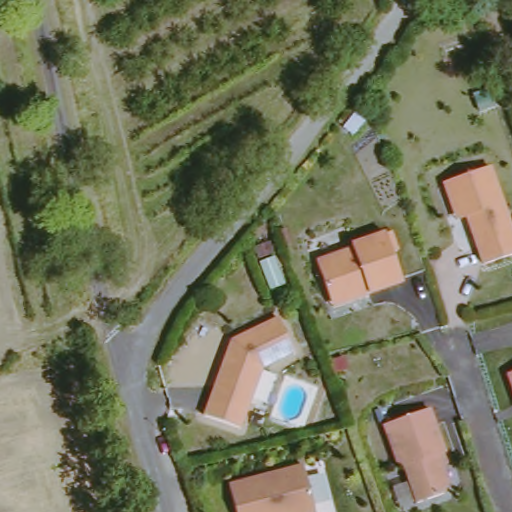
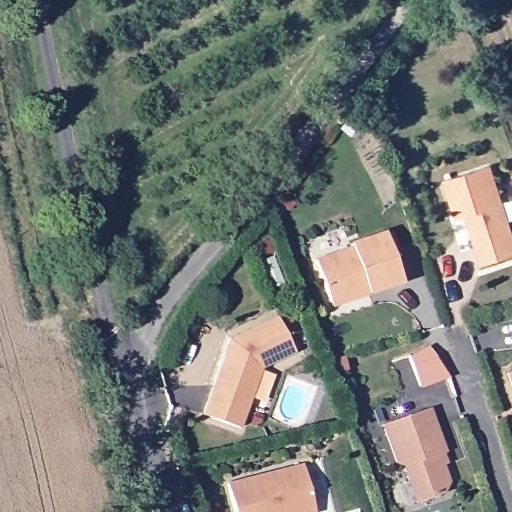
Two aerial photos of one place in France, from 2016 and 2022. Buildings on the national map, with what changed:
unchanged [(512,226),(512,254),(485,262),(468,214),(458,218),(455,210),(446,180),(491,164),(512,226)]
unchanged [(403,281),(369,291),(367,283),(351,287),(352,292),(332,298),(319,257),(354,246),(352,240),(387,231),(403,281)]
unchanged [(301,353),(269,368),(247,431),(212,418),(231,359),(235,361),(240,350),(237,342),(284,319),(301,353)]
new [(430,347),(450,377),(422,387),(411,357),(430,347)]
unchanged [(507,374),(512,372),(512,389),(507,374)]
unchanged [(446,449),(440,451),(450,480),(443,491),(416,500),(405,465),(398,460),(386,421),(431,407),(446,449)]
unchanged [(318,511),(314,512),(239,512),(231,483),(305,461),(318,511)]

